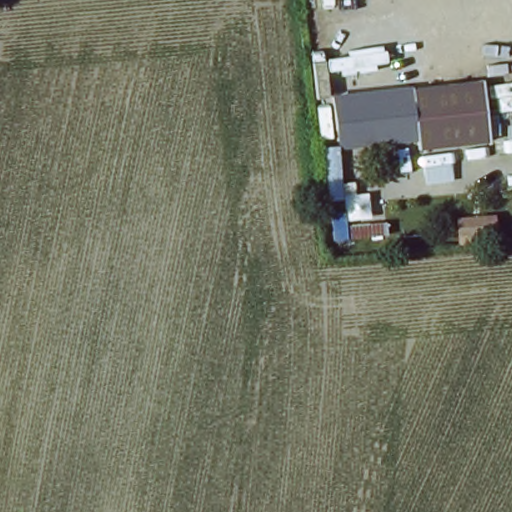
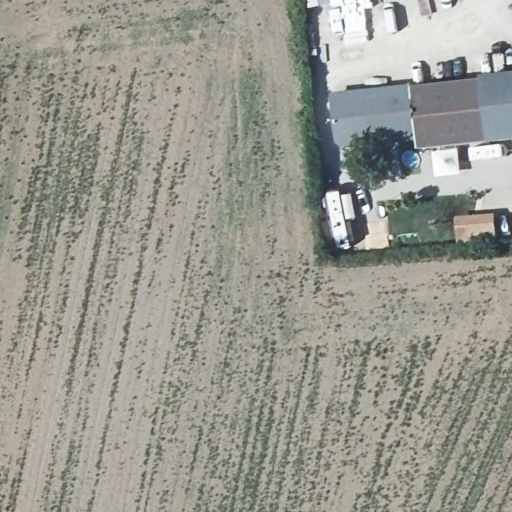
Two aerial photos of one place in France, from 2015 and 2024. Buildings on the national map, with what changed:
new [(491,144),(490,141),(483,77),(512,74),(512,142),(491,144)]
unchanged [(483,77),(490,141),(417,149),(409,86),(483,77)]
unchanged [(409,86),(416,141),(341,149),(335,95),(409,86)]
unchanged [(497,216),(499,243),(460,245),(459,217),(497,216)]

